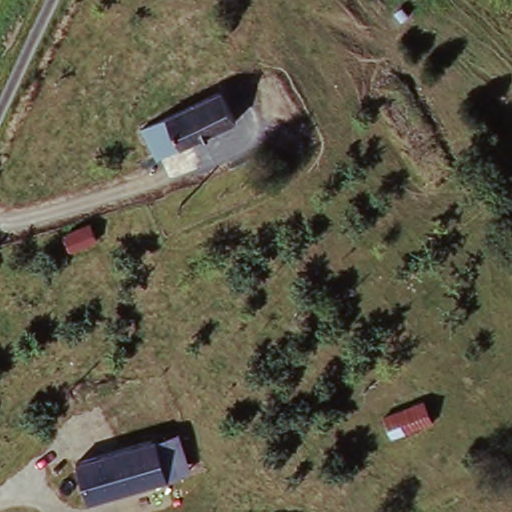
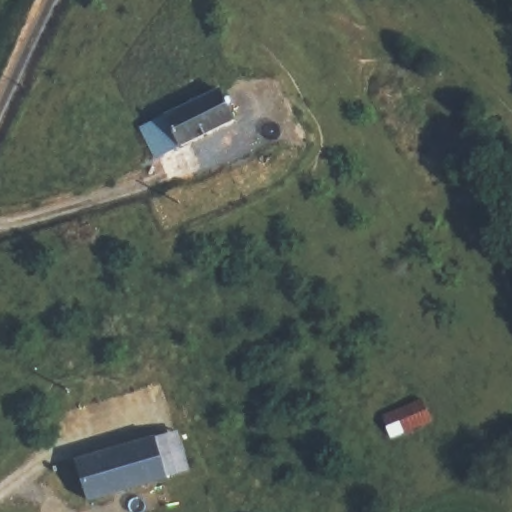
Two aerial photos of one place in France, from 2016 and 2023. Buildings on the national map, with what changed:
unchanged [(222,89),(237,119),(157,155),(143,125),(170,112),(222,89)]
unchanged [(92,222),(98,237),(71,250),(64,235),(92,222)]
unchanged [(421,387),(436,421),(396,440),(381,405),(421,387)]
unchanged [(155,438),(179,430),(190,463),(165,472),(69,503),(58,469),(155,438)]

